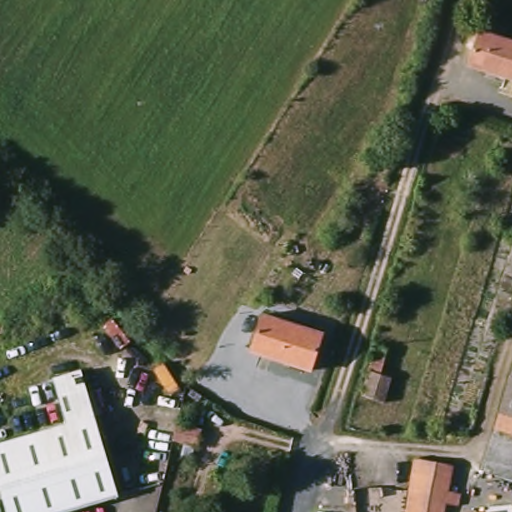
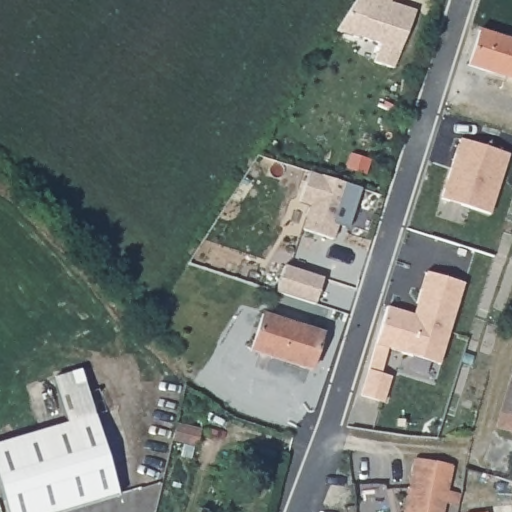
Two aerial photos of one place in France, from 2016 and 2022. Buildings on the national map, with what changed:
new [(417,10),(394,68),(373,63),(380,44),(337,30),(357,0),(393,0),(391,2),(417,10)]
unchanged [(512,80),(468,66),(480,30),(512,41),(512,80)]
new [(460,138),(509,153),(494,202),(445,187),(460,138)]
new [(309,172),(322,175),(361,188),(349,229),(338,225),(333,239),(302,229),(310,205),(300,203),(309,172)]
new [(283,265),(322,278),(314,304),(275,292),(283,265)]
new [(383,403),(361,396),(368,371),(375,345),(386,306),(413,313),(426,271),(465,284),(440,365),(389,349),(381,374),(391,378),(383,403)]
unchanged [(322,333),(310,371),(250,352),(262,314),(322,333)]
demolished [(391,378),(383,403),(361,396),(368,371),(381,374),(391,378)]
unchanged [(64,512),(7,512),(0,488),(0,444),(40,432),(27,388),(81,372),(94,416),(117,496),(64,512)]
unchanged [(512,373),(512,433),(496,428),(512,373)]
unchanged [(201,431),(197,446),(172,439),(176,425),(201,431)]
unchanged [(443,512),(406,512),(414,460),(415,459),(417,458),(449,464),(451,466),(452,469),(447,492),(460,494),(457,507),(445,504),(443,512)]
unchanged [(512,511),(512,512),(502,512),(512,511)]

